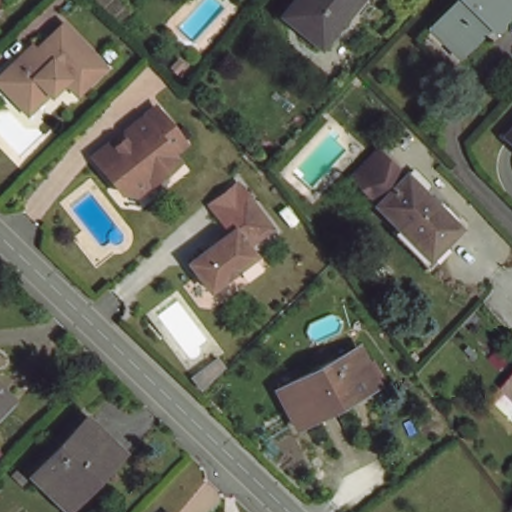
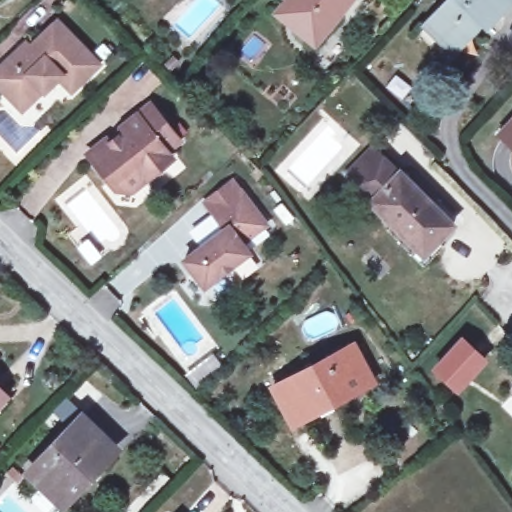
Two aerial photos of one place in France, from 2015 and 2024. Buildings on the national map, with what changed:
unchanged [(289,0),(346,0),(311,42),(278,15),(289,0)]
unchanged [(453,55),(424,27),(450,0),(508,0),(511,2),(484,31),(479,26),(457,51),(453,55)]
unchanged [(0,87),(0,68),(11,56),(27,41),(32,47),(58,20),(93,57),(100,64),(72,92),(64,84),(58,77),(44,91),(24,112),(18,105),(0,87)]
unchanged [(143,172),(126,185),(119,184),(109,171),(104,175),(83,147),(103,132),(105,136),(114,130),(115,122),(146,97),(175,135),(163,144),(166,148),(168,152),(143,172)]
unchanged [(512,128),(512,141),(506,135),(512,128)]
unchanged [(419,263),(386,228),(392,222),(355,184),(359,180),(349,169),(371,147),(381,158),(396,173),(400,170),(450,219),(432,236),(439,244),(419,263)]
unchanged [(178,254),(220,223),(208,206),(236,185),(261,219),(236,237),(243,247),(199,281),(178,254)]
new [(466,340),(488,361),(460,390),(438,369),(466,340)]
unchanged [(349,345),(369,383),(288,425),(268,388),(349,345)]
unchanged [(0,397),(0,390),(4,393),(0,397)]
unchanged [(28,473),(80,417),(110,447),(81,477),(86,481),(63,506),(28,473)]

